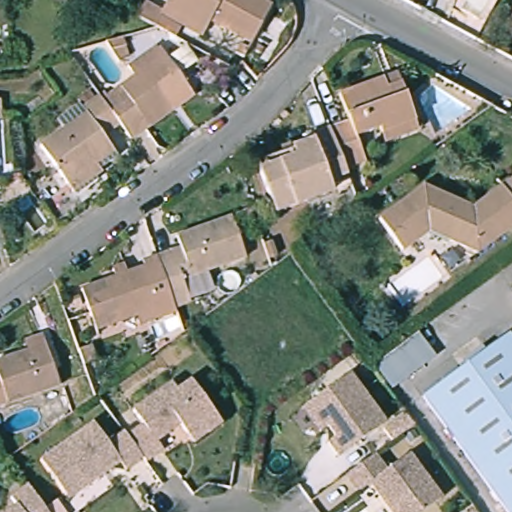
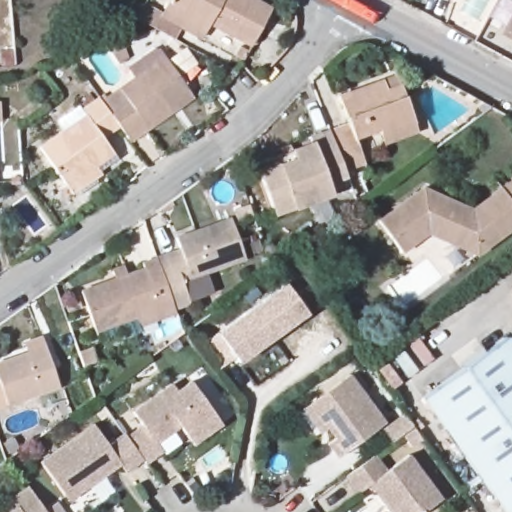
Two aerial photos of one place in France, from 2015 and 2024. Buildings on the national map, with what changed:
unchanged [(264,7),(243,45),(203,22),(196,35),(154,12),(161,0),(251,0),(264,7)]
unchanged [(154,12),(148,25),(131,16),(131,15),(138,2),(154,12)]
unchanged [(502,30),(512,10),(512,35),(502,30)]
unchanged [(126,57),(118,62),(103,41),(119,37),(126,57)]
unchanged [(97,96),(103,92),(106,96),(133,76),(128,69),(157,48),(163,55),(193,95),(171,111),(166,106),(125,136),(118,125),(97,96)]
unchanged [(384,140),(381,132),(378,127),(355,136),(365,161),(345,170),(329,129),(349,121),(339,94),(396,72),(414,120),(418,127),(384,140)]
unchanged [(118,125),(101,136),(116,156),(99,169),(103,175),(74,195),(38,146),(84,113),(80,107),(97,96),(118,125)]
unchanged [(345,170),(326,176),(331,190),(274,211),(256,162),(312,141),(311,136),(329,129),(345,170)]
unchanged [(475,250),(424,233),(402,249),(378,219),(419,189),(469,203),(512,171),(512,222),(475,250)]
unchanged [(175,247),(171,235),(226,215),(240,255),(220,264),(223,274),(189,286),(186,279),(178,281),(185,300),(169,305),(151,255),(175,247)]
unchanged [(171,310),(133,323),(130,315),(91,328),(76,289),(110,276),(108,267),(118,263),(121,272),(139,266),(137,260),(151,255),(169,305),(171,310)]
new [(291,281),(313,310),(245,360),(241,355),(224,367),(208,343),(291,281)]
unchanged [(434,356),(391,390),(371,365),(417,333),(434,356)]
unchanged [(508,512),(421,395),(503,333),(512,346),(512,512),(508,512)]
unchanged [(21,342),(39,335),(43,346),(58,385),(0,405),(0,360),(25,352),(21,342)]
unchanged [(349,372),(385,421),(337,455),(328,441),(336,436),(328,425),(319,431),(301,406),(310,400),(349,372)]
unchanged [(194,443),(186,433),(180,425),(157,440),(163,450),(146,461),(143,457),(127,435),(143,423),(134,410),(173,382),(178,390),(192,379),(216,413),(223,423),(194,443)]
unchanged [(414,426),(392,443),(381,429),(403,413),(414,426)]
unchanged [(64,492),(41,460),(93,422),(108,442),(124,431),(127,435),(143,457),(126,470),(120,461),(104,473),(88,485),(68,498),(64,492)]
unchanged [(376,452),(387,469),(410,452),(442,497),(421,512),(393,512),(371,482),(359,491),(346,474),(371,455),(376,452)]
unchanged [(11,497),(28,485),(48,512),(9,512),(18,505),(11,497)]

